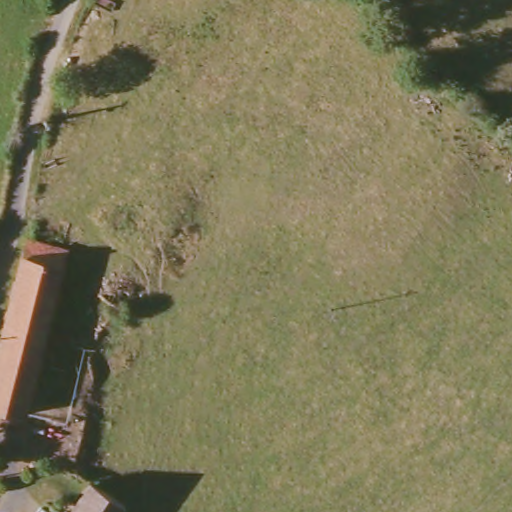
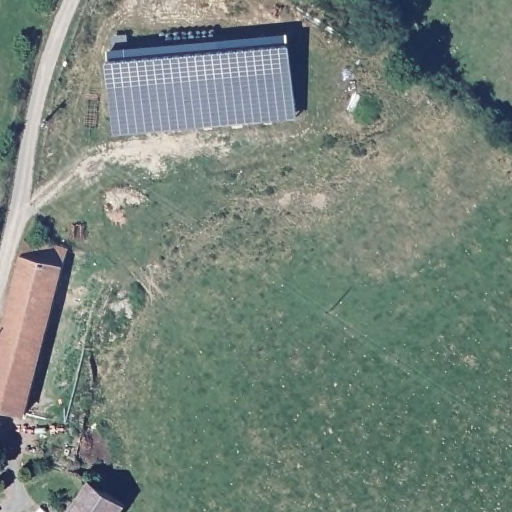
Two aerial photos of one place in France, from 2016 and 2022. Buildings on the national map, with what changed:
new [(117,133),(110,62),(110,51),(113,50),(113,38),(125,35),(127,48),(288,34),(289,46),(292,45),(299,119),(117,133)]
unchanged [(68,251),(28,419),(0,410),(0,367),(29,242),(68,251)]
unchanged [(125,510),(123,512),(63,512),(69,504),(77,509),(94,486),(125,510)]

